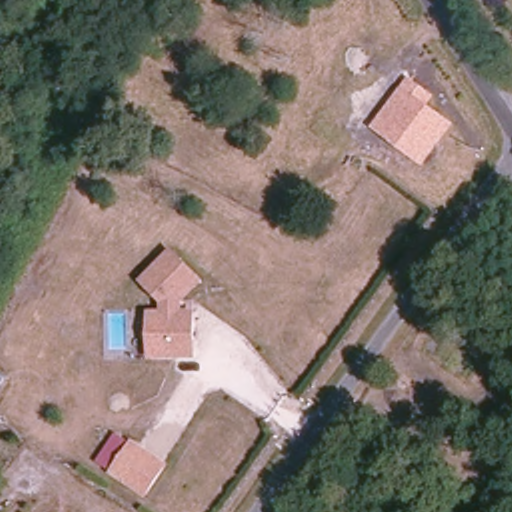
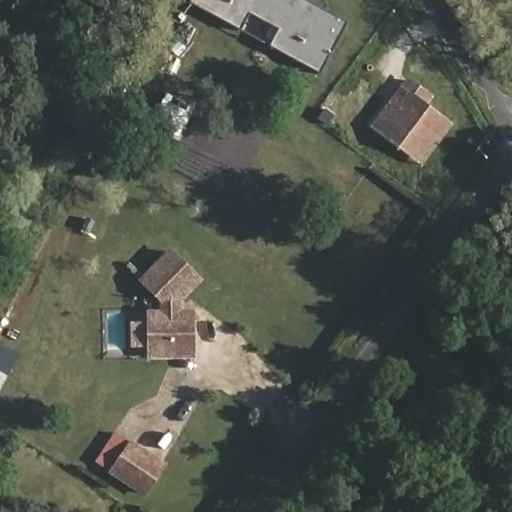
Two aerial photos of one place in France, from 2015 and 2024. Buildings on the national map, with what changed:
new [(306,0),(348,23),(321,74),(270,46),(278,30),(250,14),(242,30),(192,4),(194,0),(306,0)]
demolished [(329,85),(348,65),(360,73),(342,93),(329,85)]
unchanged [(438,97),(431,107),(447,119),(421,156),(382,130),(416,81),(438,97)]
unchanged [(167,357),(145,357),(145,345),(146,314),(160,314),(160,302),(139,282),(167,253),(194,279),(196,280),(180,299),(176,302),(176,303),(175,315),(189,315),(188,342),(188,358),(167,357)]
unchanged [(132,441),(164,464),(144,493),(111,470),(132,441)]

